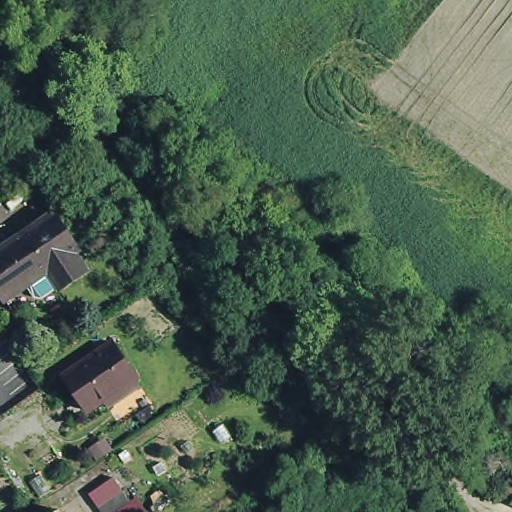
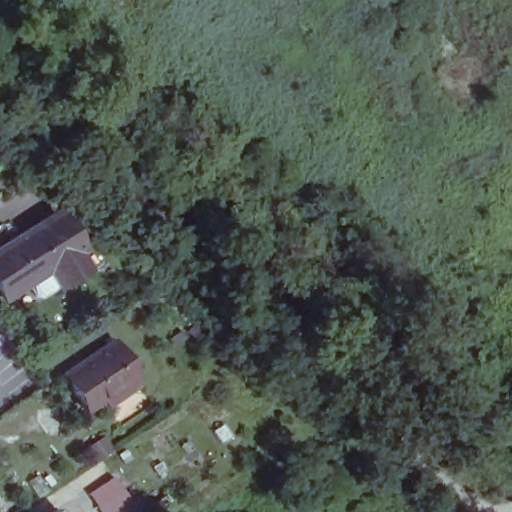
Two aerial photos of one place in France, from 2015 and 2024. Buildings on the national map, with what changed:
unchanged [(21,285),(0,300),(0,247),(49,215),(73,250),(69,253),(80,270),(55,287),(36,298),(30,297),(21,285)]
unchanged [(107,402),(102,395),(87,406),(62,371),(110,337),(135,372),(133,372),(138,380),(107,402)]
unchanged [(117,512),(100,512),(97,507),(89,496),(113,478),(122,491),(130,503),(117,512)]
unchanged [(51,511),(53,512),(49,512),(51,511)]

